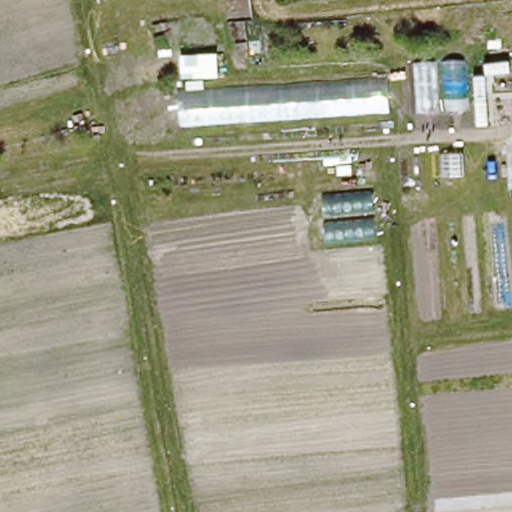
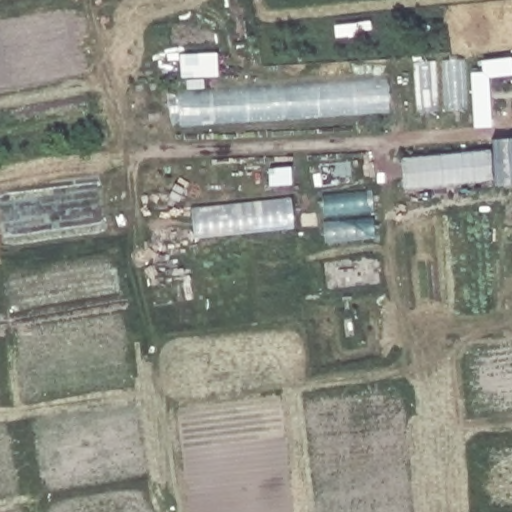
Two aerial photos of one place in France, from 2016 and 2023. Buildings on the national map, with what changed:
unchanged [(414,59),(465,58),(467,109),(416,110),(414,59)]
unchanged [(387,84),(387,109),(179,120),(178,95),(387,84)]
new [(495,179),(402,188),(400,158),(492,149),(495,179)]
unchanged [(322,195),(374,190),(376,234),(325,241),(322,195)]
new [(293,227),(192,237),(190,209),(291,198),(293,227)]

